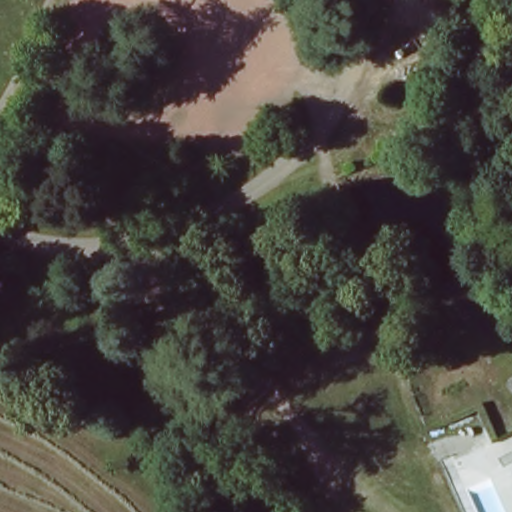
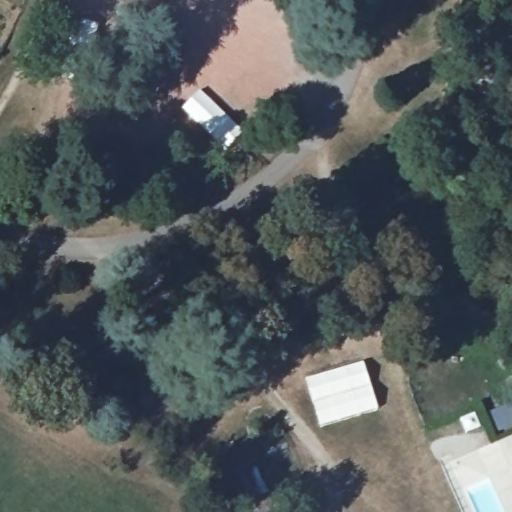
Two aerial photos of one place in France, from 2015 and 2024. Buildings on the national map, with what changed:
new [(364,360),(379,411),(319,427),(305,377),(364,360)]

